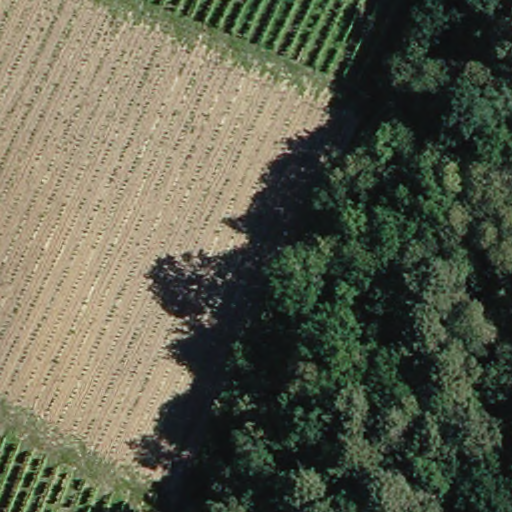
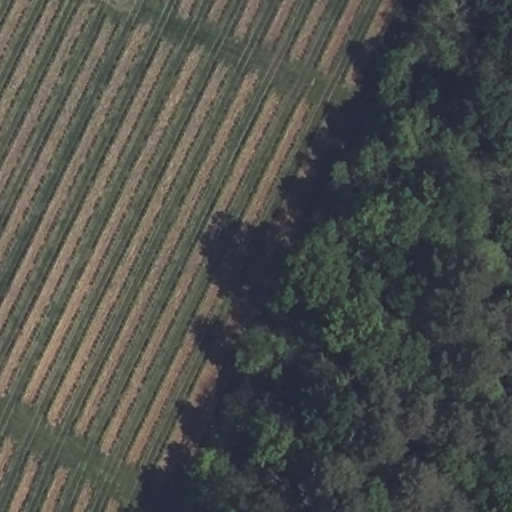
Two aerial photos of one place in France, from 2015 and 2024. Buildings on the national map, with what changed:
[]

